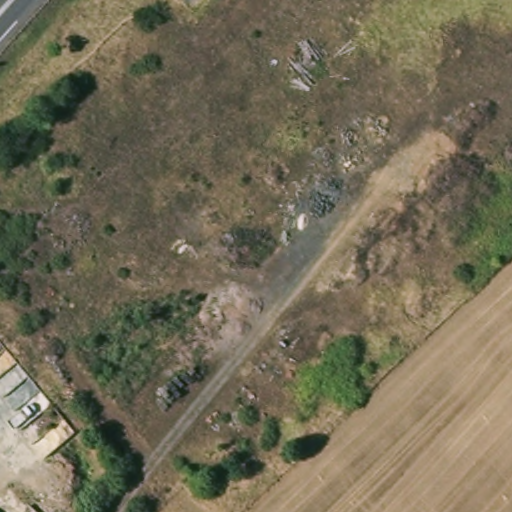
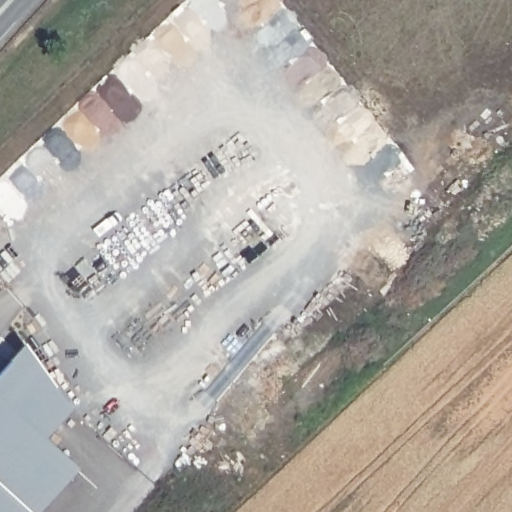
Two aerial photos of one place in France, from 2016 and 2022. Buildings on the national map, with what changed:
new [(38,512),(0,512),(0,371),(22,346),(70,412),(44,440),(77,470),(38,512)]
demolished [(1,512),(0,512),(0,511),(1,512)]

